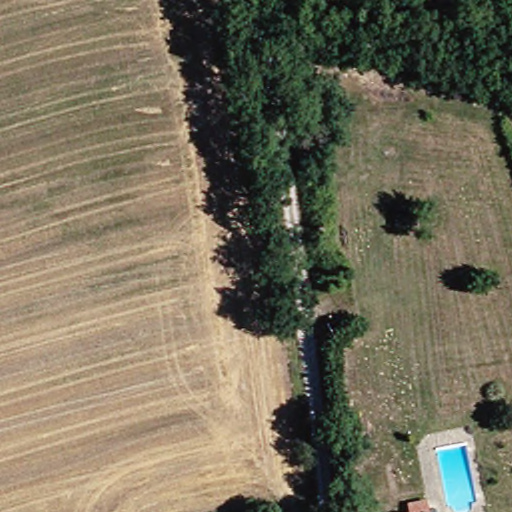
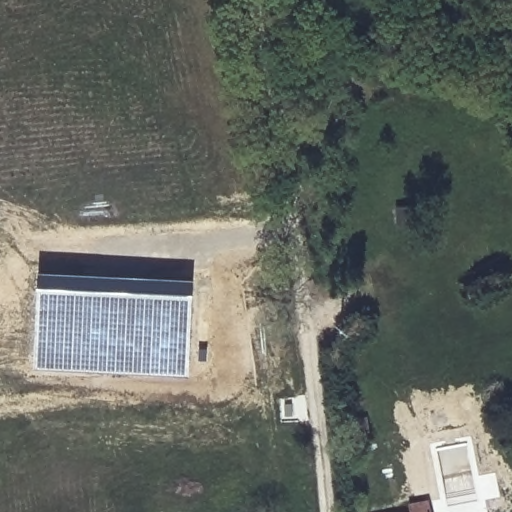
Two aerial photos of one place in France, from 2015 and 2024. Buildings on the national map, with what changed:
new [(187,377),(33,369),(38,272),(192,279),(187,377)]
unchanged [(417,502),(419,512),(401,512),(400,504),(417,502)]

